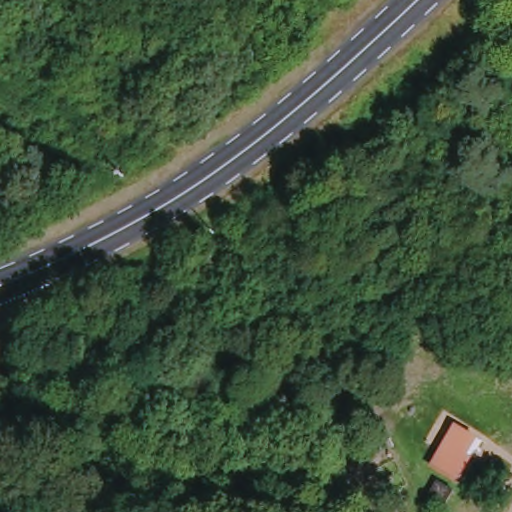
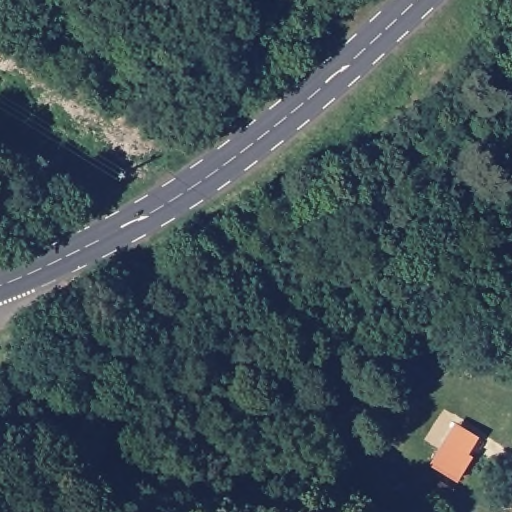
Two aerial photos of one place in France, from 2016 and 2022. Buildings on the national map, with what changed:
unchanged [(462,481),(435,467),(458,424),(485,437),(462,481)]

